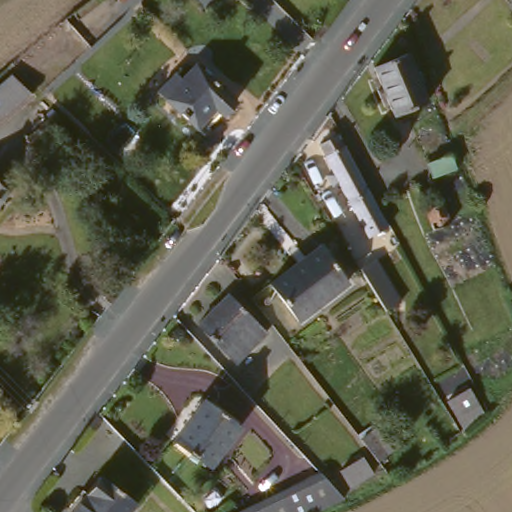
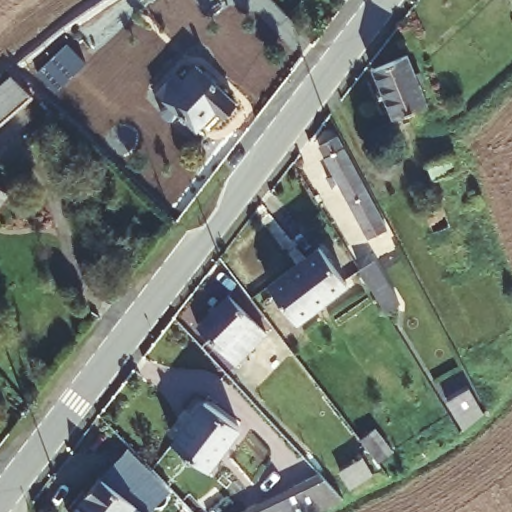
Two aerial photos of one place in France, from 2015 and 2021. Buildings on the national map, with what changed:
unchanged [(112,15),(98,0),(129,0),(112,15)]
unchanged [(402,63),(417,107),(384,118),(369,75),(402,63)]
unchanged [(195,69),(230,108),(197,139),(162,99),(195,69)]
unchanged [(26,98),(0,117),(0,86),(9,78),(26,98)]
unchanged [(421,158),(417,145),(448,134),(464,180),(435,191),(438,201),(424,206),(406,164),(421,158)]
unchanged [(330,138),(343,161),(385,234),(366,244),(335,191),(329,179),(312,148),(330,138)]
unchanged [(0,201),(0,195),(3,197),(0,201)]
unchanged [(446,231),(427,239),(418,211),(439,203),(446,231)]
unchanged [(306,251),(335,286),(296,318),(267,283),(306,251)]
unchanged [(368,261),(395,301),(391,304),(380,312),(355,275),(353,271),(363,264),(368,261)]
unchanged [(222,299),(261,334),(232,365),(194,332),(222,299)]
unchanged [(475,386),(487,412),(455,431),(443,405),(475,386)]
unchanged [(202,408),(234,433),(207,468),(175,442),(202,408)]
unchanged [(369,481),(343,496),(332,474),(357,459),(369,481)]
unchanged [(128,510),(126,512),(69,512),(92,483),(128,510)]
unchanged [(326,504),(307,512),(259,512),(310,489),(326,504)]

